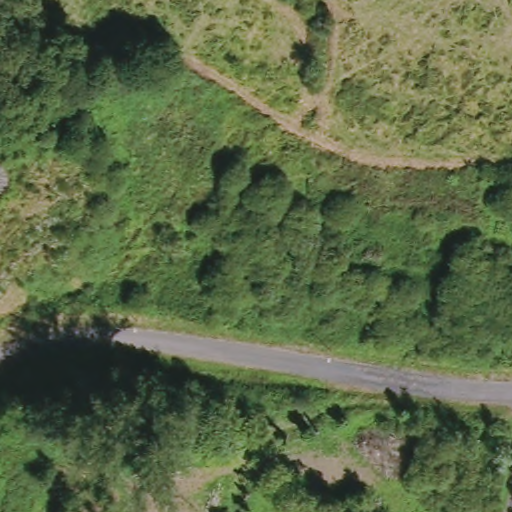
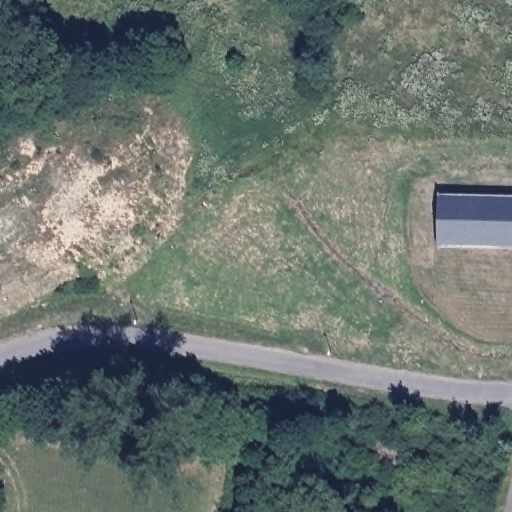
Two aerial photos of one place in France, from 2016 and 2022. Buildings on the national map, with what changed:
new [(512,194),(512,247),(439,245),(439,192),(512,194)]

